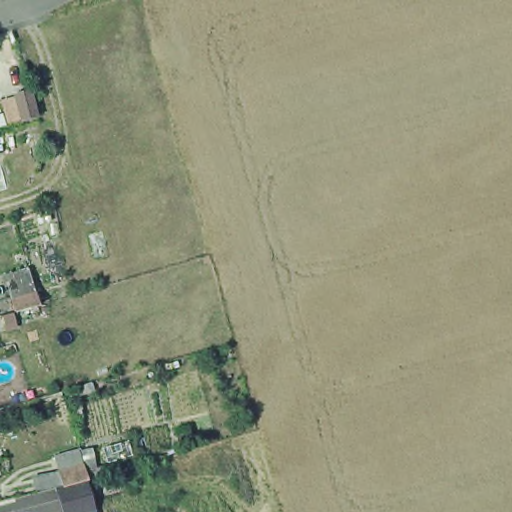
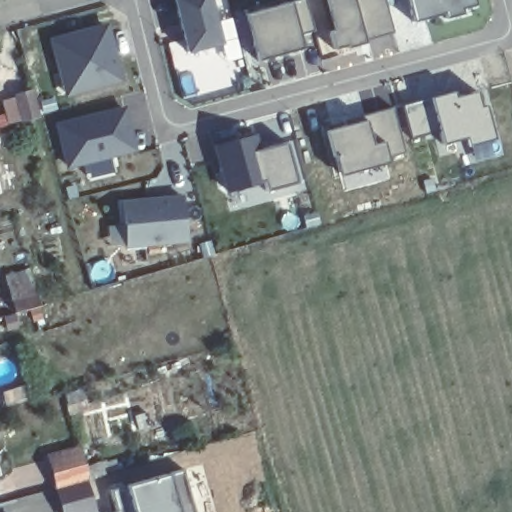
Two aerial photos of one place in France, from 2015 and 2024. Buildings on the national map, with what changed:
new [(187,55),(171,0),(216,0),(226,49),(187,55)]
new [(306,0),(314,31),(300,35),(303,48),(258,60),(253,41),(245,14),(257,10),(294,0),(306,0)]
new [(347,48),(346,48),(345,45),(333,49),(328,30),(333,30),(324,0),(384,0),(393,32),(392,32),(391,29),(351,40),(352,44),(346,45),(347,48)]
new [(463,14),(445,19),(443,14),(413,22),(407,0),(474,0),(476,5),(461,9),(463,14)]
new [(114,20),(126,86),(66,101),(47,35),(114,20)]
new [(495,139),(468,146),(465,138),(442,144),(439,131),(411,139),(402,105),(431,97),(432,102),(454,96),(453,91),(454,90),(455,96),(477,90),(481,106),(485,105),(495,139)]
unchanged [(41,119),(35,120),(25,124),(17,96),(34,92),(41,119)]
new [(392,107),(405,152),(388,157),(389,162),(361,170),(360,166),(339,172),(330,139),(336,137),(333,129),(345,125),(344,120),(392,107)]
new [(136,151),(70,167),(60,127),(126,110),(136,151)]
new [(298,182),(266,191),(263,181),(227,191),(215,145),(253,135),(257,150),(286,141),(298,182)]
new [(185,198),(189,242),(129,249),(125,206),(158,203),(158,200),(185,198)]
unchanged [(17,314),(13,300),(11,290),(7,277),(32,270),(35,282),(38,293),(42,307),(46,321),(21,328),(17,314)]
unchanged [(16,315),(20,328),(0,335),(0,319),(16,315)]
new [(84,446),(98,512),(62,512),(48,455),(84,446)]
demolished [(68,501),(65,487),(61,473),(85,466),(89,481),(93,494),(68,501)]
new [(183,468),(197,512),(112,512),(106,490),(183,468)]

